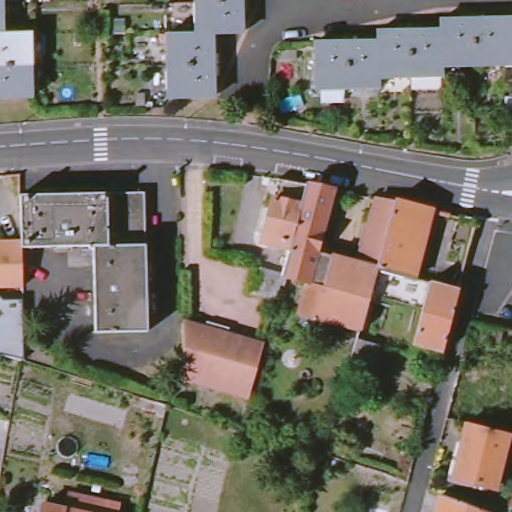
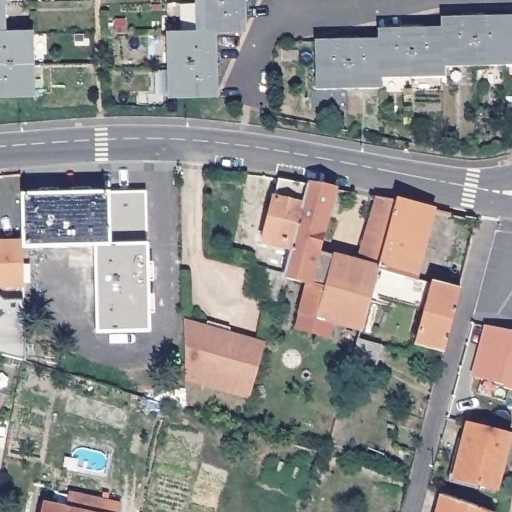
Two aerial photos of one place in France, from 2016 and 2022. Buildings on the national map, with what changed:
unchanged [(0,34),(0,0),(3,0),(3,34),(30,33),(32,64),(32,96),(0,97),(0,64),(0,34)]
unchanged [(213,28),(196,29),(196,0),(243,0),(243,27),(213,28)]
unchanged [(509,20),(512,19),(512,65),(510,65),(509,20)]
unchanged [(510,65),(447,67),(447,30),(446,22),(509,20),(510,65)]
unchanged [(167,60),(166,30),(196,29),(213,28),(214,60),(167,60)]
unchanged [(447,30),(447,67),(447,75),(416,76),(415,32),(447,30)]
unchanged [(382,34),(415,32),(416,76),(383,78),(382,41),(382,34)]
unchanged [(382,41),(383,78),(384,87),(322,90),(320,44),(382,41)]
unchanged [(214,60),(215,91),(168,94),(167,60),(214,60)]
unchanged [(305,179),(289,244),(262,236),(278,174),(305,179)]
unchanged [(248,290),(255,265),(282,271),(289,244),(305,179),(334,184),(317,246),(358,256),(377,194),(393,197),(376,262),(367,293),(359,325),(317,314),(312,328),(295,322),(301,285),(280,280),(275,297),(248,290)]
unchanged [(0,281),(0,237),(22,237),(21,191),(143,189),(147,326),(96,326),(93,241),(22,242),(23,281),(0,281)]
unchanged [(431,205),(415,271),(376,262),(393,197),(431,205)]
unchanged [(376,262),(415,271),(458,284),(442,348),(410,340),(420,303),(367,293),(376,262)]
unchanged [(227,334),(265,344),(250,398),(185,381),(183,350),(183,323),(227,334)]
new [(472,377),(484,323),(512,329),(512,388),(472,377)]
unchanged [(346,372),(357,332),(382,340),(371,378),(346,372)]
unchanged [(509,435),(495,490),(452,479),(457,463),(461,464),(466,445),(462,443),(467,425),(509,435)]
unchanged [(70,510),(74,491),(126,503),(124,512),(49,512),(50,505),(70,510)]
unchanged [(442,496),(485,512),(437,512),(442,496)]

